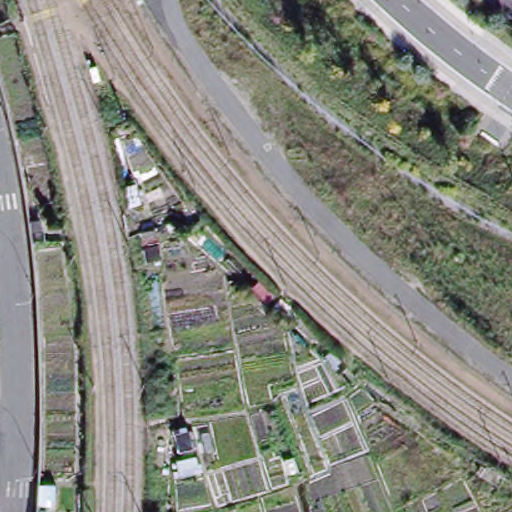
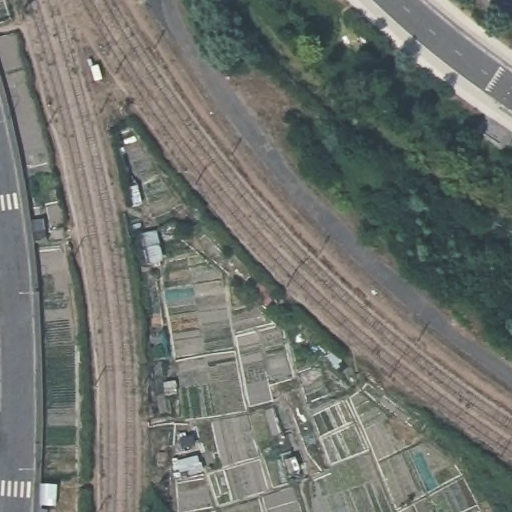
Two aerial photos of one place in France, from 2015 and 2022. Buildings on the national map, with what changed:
unchanged [(128,188),(137,186),(141,205),(132,207),(128,188)]
unchanged [(179,453),(175,436),(190,432),(194,449),(179,453)]

